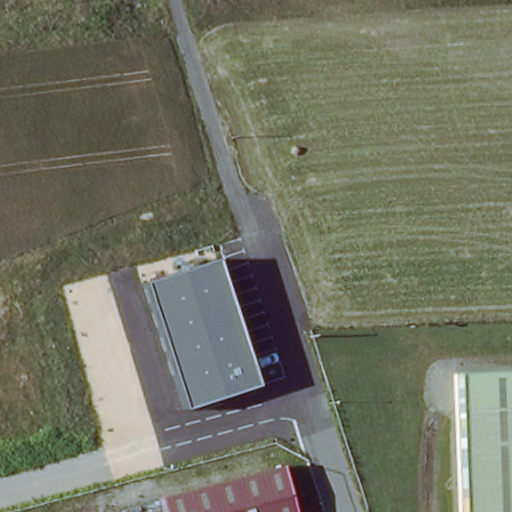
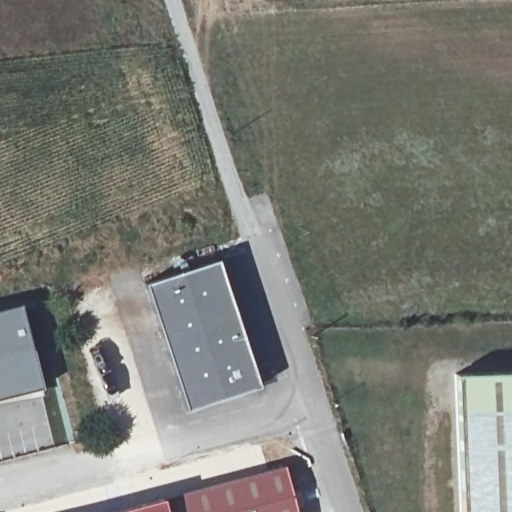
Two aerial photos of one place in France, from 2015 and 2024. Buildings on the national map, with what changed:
unchanged [(258,387),(185,409),(145,284),(217,260),(258,387)]
new [(52,379),(0,392),(0,308),(34,300),(52,379)]
unchanged [(459,383),(459,378),(512,376),(512,512),(464,512),(459,383)]
unchanged [(166,502),(287,470),(298,512),(169,512),(166,502)]

